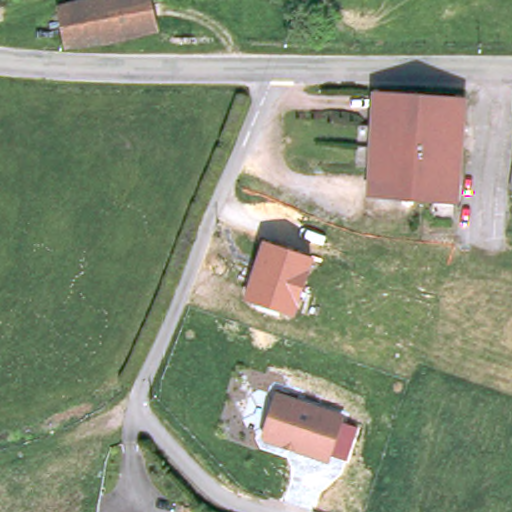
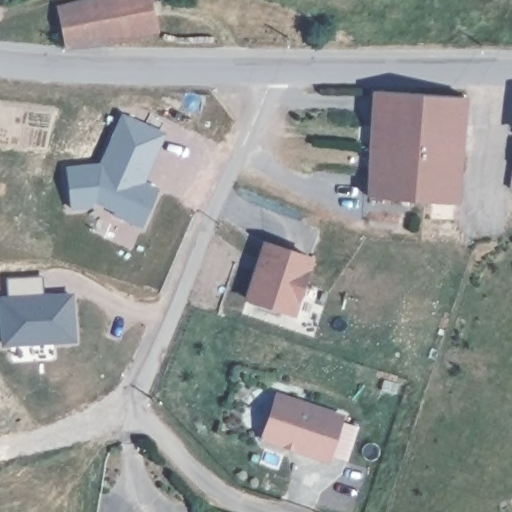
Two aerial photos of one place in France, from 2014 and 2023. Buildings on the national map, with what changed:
unchanged [(114,0),(149,0),(157,35),(107,48),(65,53),(57,13),(114,0)]
unchanged [(393,87),(440,91),(462,92),(461,98),(451,199),(374,192),(365,191),(368,169),(370,146),(374,122),(374,120),(377,86),(393,87)]
unchanged [(509,141),(510,136),(509,136),(512,112),(512,142),(509,141)]
new [(70,210),(65,167),(100,161),(105,164),(109,157),(102,154),(120,113),(165,133),(143,180),(158,187),(140,226),(111,214),(113,210),(90,200),(90,205),(70,210)]
unchanged [(510,162),(512,163),(512,187),(506,185),(510,162)]
unchanged [(315,257),(295,317),(245,298),(264,240),(315,257)]
new [(7,278),(42,276),(44,294),(72,293),(77,343),(3,347),(0,317),(0,296),(8,295),(7,278)]
unchanged [(265,437),(262,433),(277,393),(339,415),(324,458),(265,437)]

